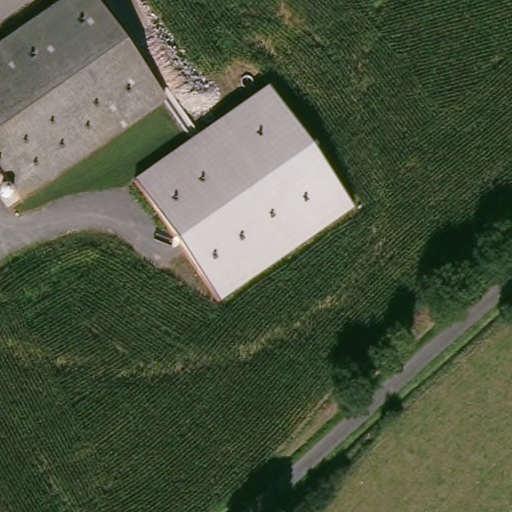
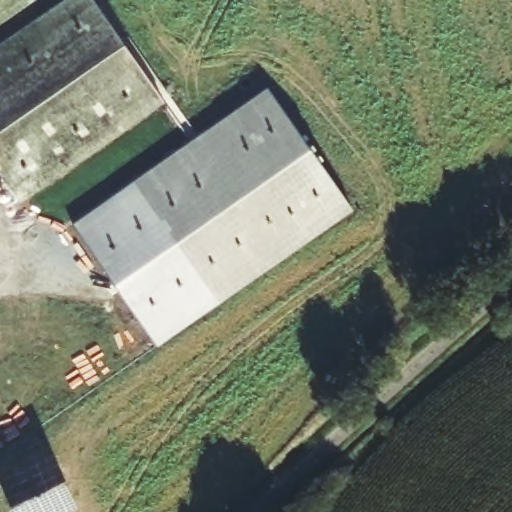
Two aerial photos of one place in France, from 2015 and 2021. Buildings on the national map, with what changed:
unchanged [(30,0),(0,20),(0,0),(30,0)]
unchanged [(90,153),(35,96),(25,86),(0,54),(0,43),(65,0),(93,0),(165,104),(90,153)]
unchanged [(25,86),(35,96),(90,153),(22,198),(0,165),(0,54),(25,86)]
unchanged [(133,181),(266,87),(353,209),(219,302),(133,181)]
new [(219,302),(159,346),(74,223),(133,181),(219,302)]

